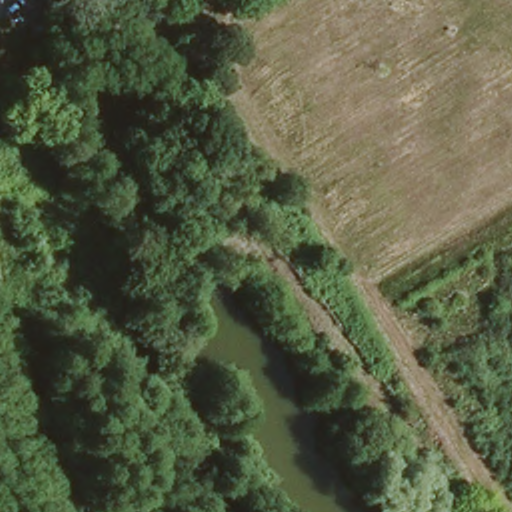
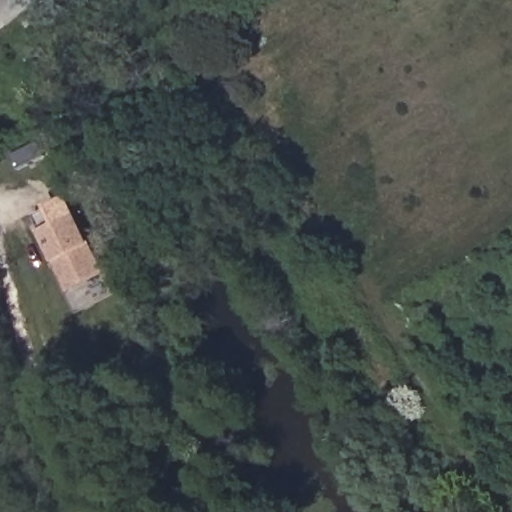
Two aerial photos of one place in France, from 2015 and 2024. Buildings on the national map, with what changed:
new [(9,168),(3,154),(31,140),(38,154),(9,168)]
new [(99,271),(60,291),(24,216),(63,196),(99,271)]

